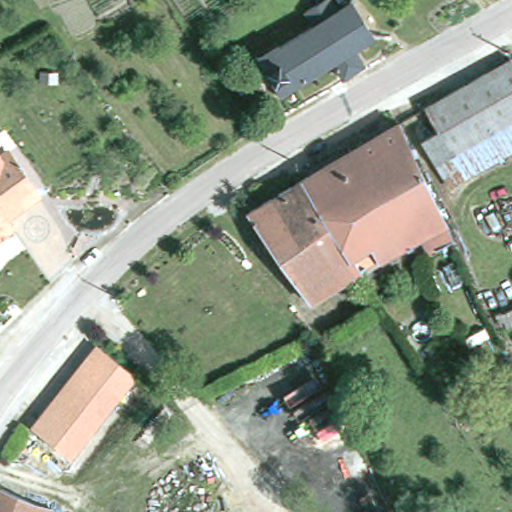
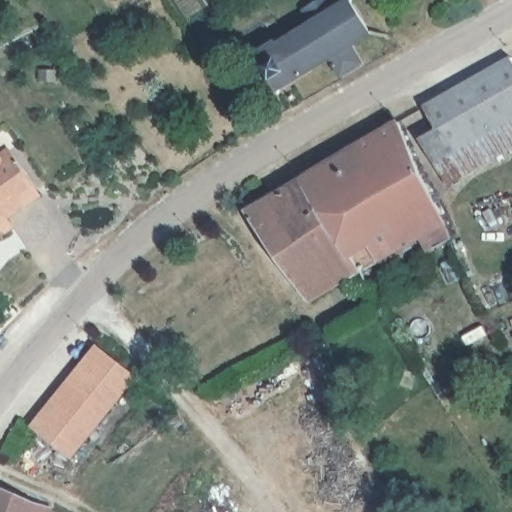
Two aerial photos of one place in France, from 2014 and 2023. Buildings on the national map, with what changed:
unchanged [(314,29),(305,13),(324,2),(328,0),(336,14),(351,6),(371,37),(351,50),(362,69),(344,80),(333,62),(279,94),(260,62),(314,29)]
unchanged [(509,60),(512,64),(512,151),(454,182),(424,136),(438,130),(424,99),(509,60)]
unchanged [(383,277),(366,287),(358,271),(304,177),(400,122),(447,222),(373,261),(383,277)]
unchanged [(37,199),(4,222),(11,231),(0,238),(0,159),(6,155),(37,199)]
unchanged [(246,211),(304,177),(358,271),(311,299),(246,211)]
unchanged [(138,378),(72,458),(30,425),(95,343),(138,378)]
unchanged [(0,486),(33,502),(50,507),(49,512),(0,512),(0,486)]

